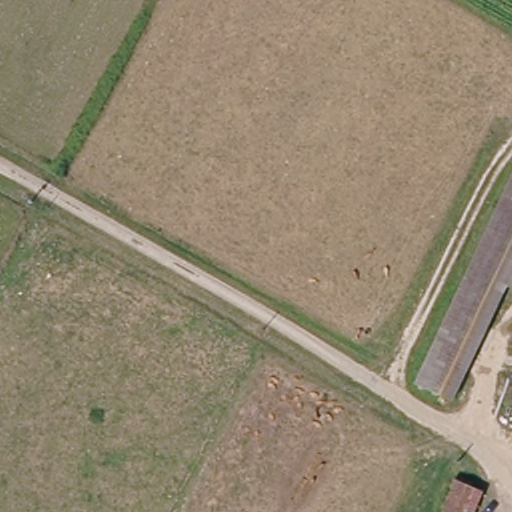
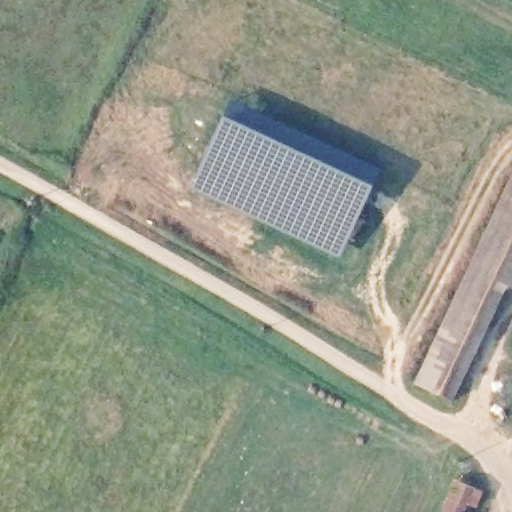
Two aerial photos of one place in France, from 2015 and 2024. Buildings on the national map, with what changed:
new [(379,168),(338,256),(191,187),(233,99),(379,168)]
unchanged [(512,177),(512,288),(497,321),(455,304),(512,177)]
unchanged [(455,304),(497,321),(462,396),(424,381),(455,304)]
unchanged [(454,483),(472,490),(462,512),(443,512),(454,483)]

